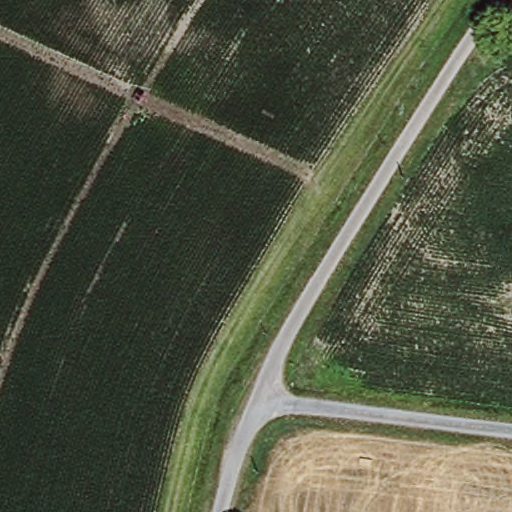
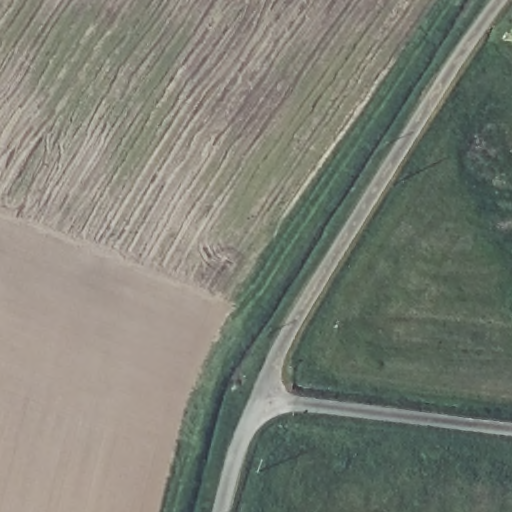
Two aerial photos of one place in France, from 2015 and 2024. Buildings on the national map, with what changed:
[]

